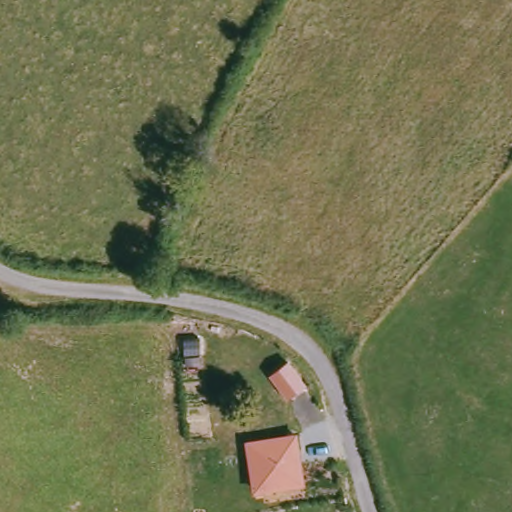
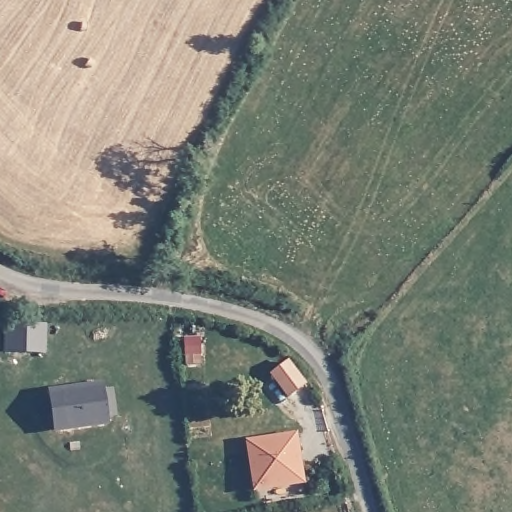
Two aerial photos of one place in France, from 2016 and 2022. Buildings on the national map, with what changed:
new [(50,393),(105,386),(109,420),(55,428),(50,393)]
unchanged [(241,441),(295,433),(303,484),(250,492),(241,441)]

